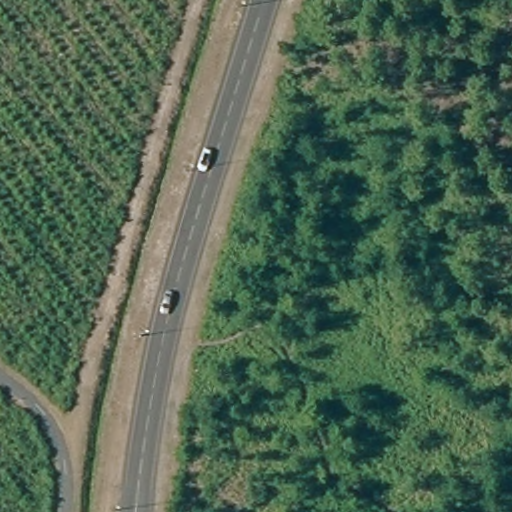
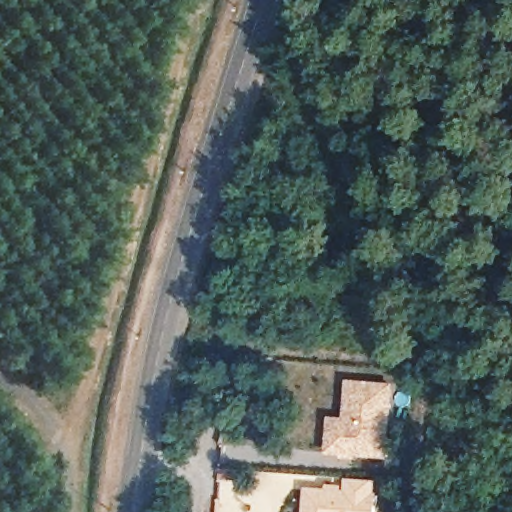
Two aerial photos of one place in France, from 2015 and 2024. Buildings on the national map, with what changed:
new [(328,415),(343,415),(345,378),(397,382),(390,459),(325,453),(328,415)]
new [(305,485),(325,486),(325,483),(343,484),(344,476),(379,479),(377,512),(303,512),(305,485)]

